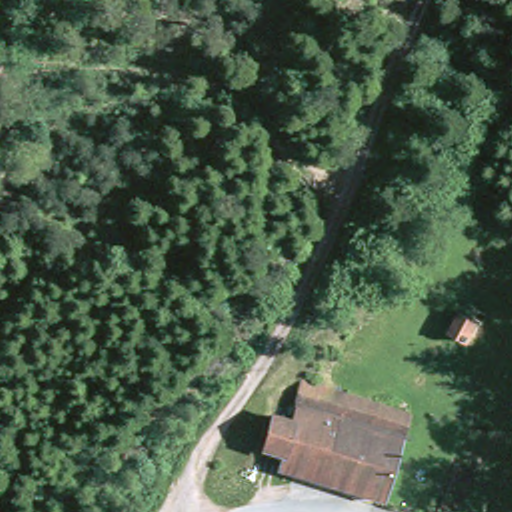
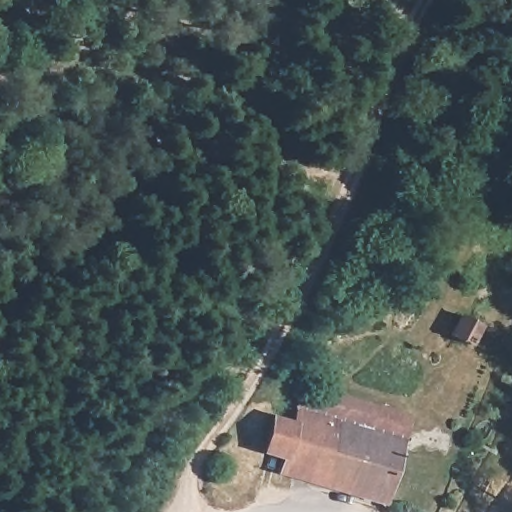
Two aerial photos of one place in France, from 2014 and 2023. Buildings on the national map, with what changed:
unchanged [(408,415),(400,435),(323,411),(292,479),(264,470),(301,400),(310,384),(408,415)]
unchanged [(278,393),(301,400),(264,470),(245,464),(278,393)]
unchanged [(323,411),(400,435),(368,503),(292,479),(323,411)]

